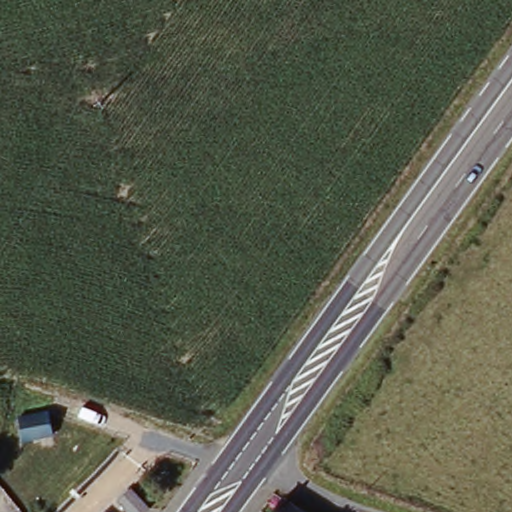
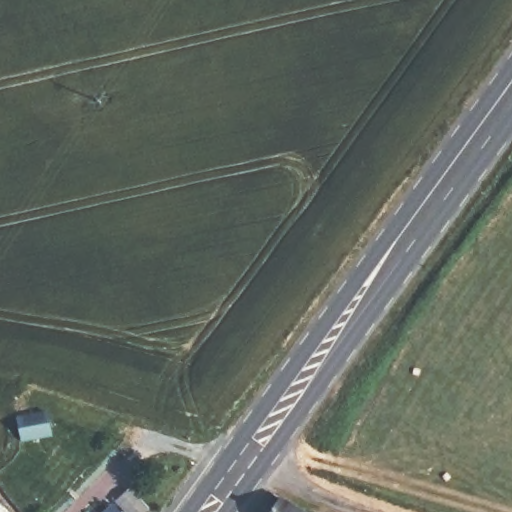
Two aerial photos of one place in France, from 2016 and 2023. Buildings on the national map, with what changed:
unchanged [(46,415),(50,437),(21,442),(16,421),(46,415)]
unchanged [(145,512),(121,512),(113,504),(127,493),(145,512)]
unchanged [(290,496),(310,512),(279,512),(288,496),(290,496)]

